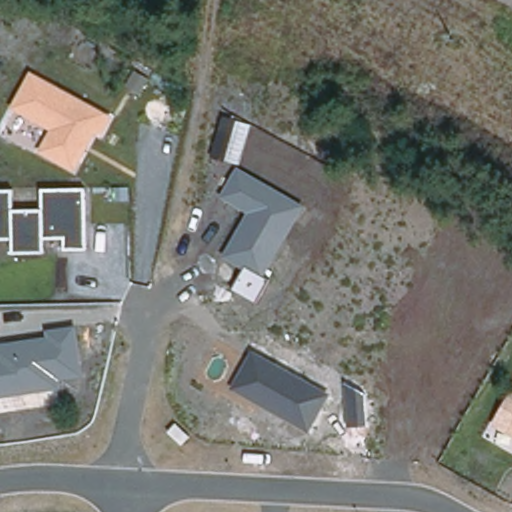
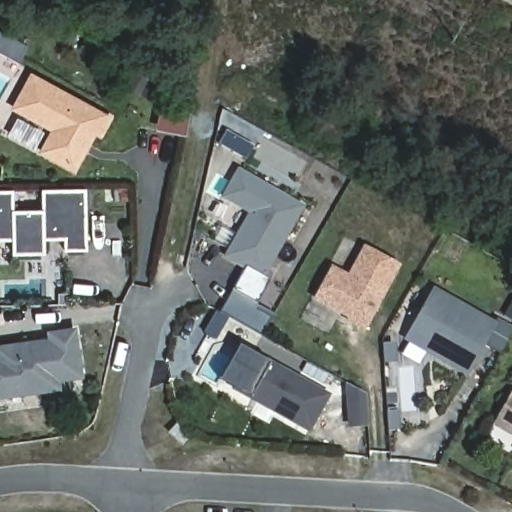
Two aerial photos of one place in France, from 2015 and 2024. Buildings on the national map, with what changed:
unchanged [(74,172),(38,151),(50,129),(10,108),(30,72),(112,117),(101,136),(95,133),(74,172)]
unchanged [(303,205),(264,278),(268,280),(256,303),(232,290),(242,271),(221,258),(247,212),(219,196),(237,167),(303,205)]
unchanged [(65,249),(65,237),(44,238),(43,252),(12,252),(12,238),(0,239),(0,190),(11,190),(12,210),(43,209),(42,189),(85,188),(86,249),(65,249)]
new [(364,332),(346,322),(347,319),(312,300),(331,265),(348,274),(364,246),(402,265),(364,332)]
new [(467,376),(404,341),(433,286),(497,322),(498,318),(512,326),(512,334),(500,353),(485,345),(467,376)]
unchanged [(47,338),(45,330),(76,327),(82,377),(59,381),(60,390),(0,398),(0,344),(47,338)]
unchanged [(309,433),(231,389),(252,350),(330,394),(309,433)]
unchanged [(368,425),(347,427),(344,382),(366,393),(368,425)]
unchanged [(511,385),(512,386),(512,438),(489,425),(511,385)]

